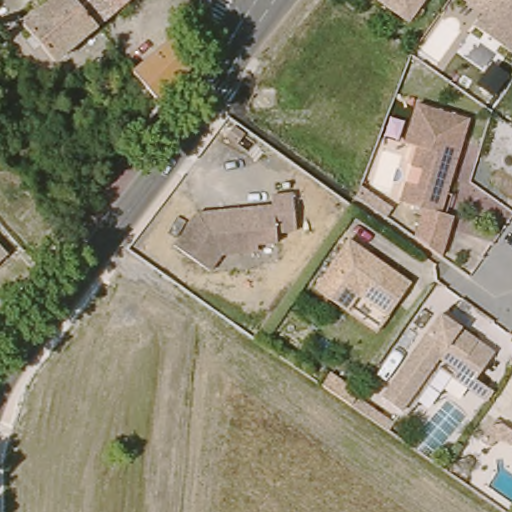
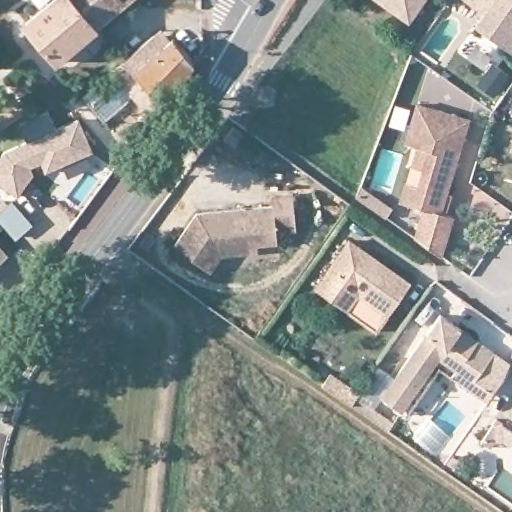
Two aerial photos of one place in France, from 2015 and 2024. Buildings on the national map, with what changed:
unchanged [(21,8),(34,0),(131,0),(102,18),(47,52),(21,8)]
unchanged [(388,0),(422,0),(411,16),(388,0)]
unchanged [(485,11),(469,0),(512,0),(512,47),(477,21),(485,11)]
unchanged [(160,105),(136,64),(177,38),(192,61),(160,105)]
unchanged [(430,143),(407,136),(418,97),(471,113),(462,141),(460,151),(443,206),(456,210),(444,249),(418,231),(424,208),(416,205),(418,200),(414,199),(403,195),(408,176),(420,180),(430,143)]
new [(93,155),(45,175),(41,166),(31,170),(34,176),(18,197),(0,185),(0,157),(4,151),(25,143),(20,126),(67,108),(74,123),(79,121),(93,155)]
unchanged [(395,201),(389,210),(359,189),(363,179),(395,201)]
unchanged [(302,226),(282,229),(283,239),(264,242),(265,249),(228,254),(216,269),(180,246),(201,213),(277,202),(276,193),(296,190),(302,226)]
new [(0,216),(0,209),(10,200),(30,221),(17,234),(0,216)]
unchanged [(343,308),(315,287),(352,234),(411,277),(386,311),(356,290),(343,308)]
unchanged [(11,259),(0,268),(0,246),(11,259)]
unchanged [(511,367),(495,390),(478,379),(471,387),(443,367),(410,414),(385,395),(443,313),(497,351),(512,362),(511,367)]
new [(390,425),(364,408),(353,401),(334,388),(342,376),(361,389),(372,397),(369,401),(395,418),(406,426),(402,433),(390,425)]
unchanged [(512,427),(512,439),(501,452),(483,441),(501,417),(512,427)]

